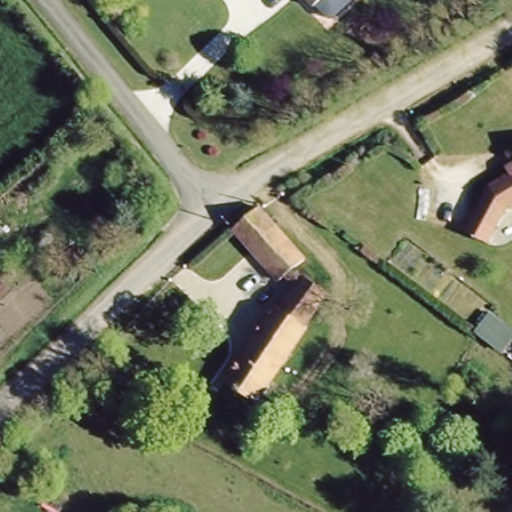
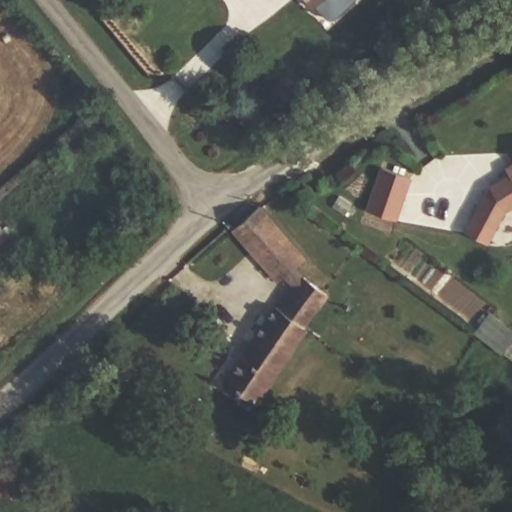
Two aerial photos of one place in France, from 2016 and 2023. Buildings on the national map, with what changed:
unchanged [(312,5),(307,0),(322,0),(314,7),(312,5)]
unchanged [(489,189),(511,176),(508,170),(512,168),(512,208),(503,213),(492,234),(471,221),(489,189)]
new [(382,174),(411,184),(396,226),(367,216),(382,174)]
unchanged [(308,330),(258,405),(227,383),(286,302),(290,305),(301,289),(285,278),(279,282),(236,230),(265,209),(305,261),(295,268),(328,291),(312,315),(303,327),(308,330)]
unchanged [(0,234),(0,225),(4,230),(0,234)]
unchanged [(492,311),(512,326),(512,345),(507,353),(478,330),(492,311)]

